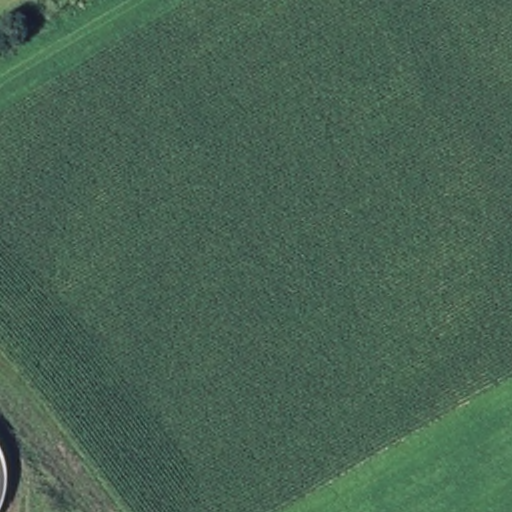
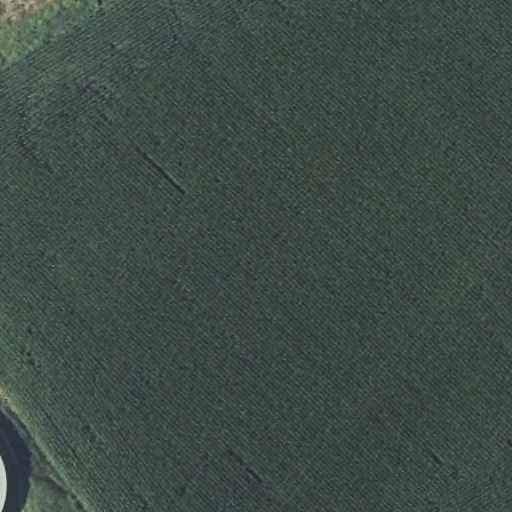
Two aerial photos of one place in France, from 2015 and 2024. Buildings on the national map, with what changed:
unchanged [(10,461),(12,480),(9,509),(7,512),(0,512),(0,443),(10,461)]

